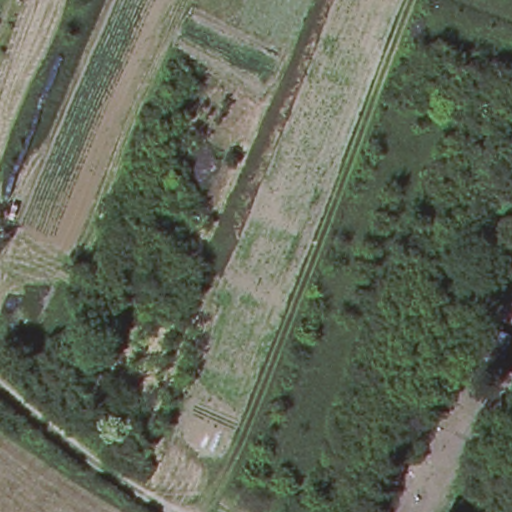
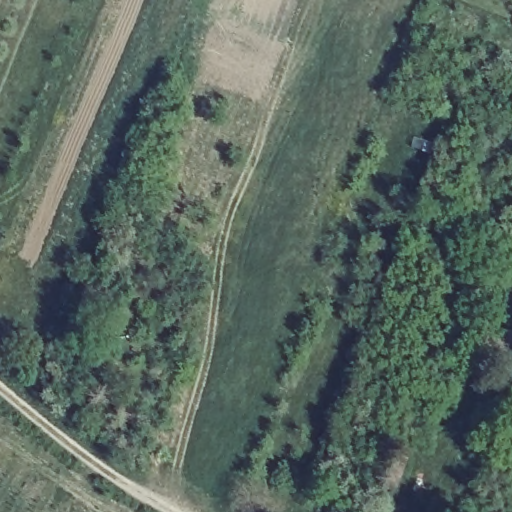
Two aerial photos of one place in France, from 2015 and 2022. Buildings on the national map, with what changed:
unchanged [(487,352),(493,323),(512,330),(505,359),(487,352)]

